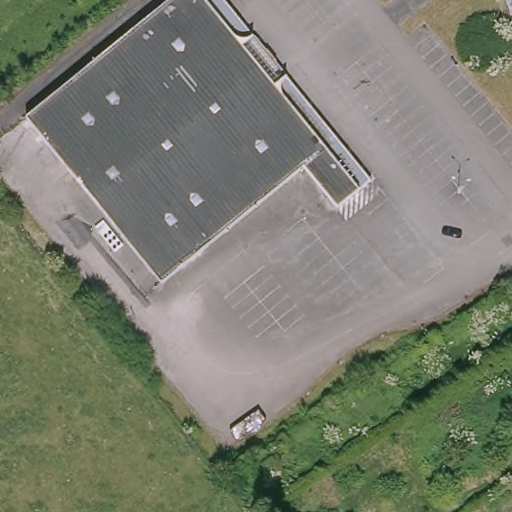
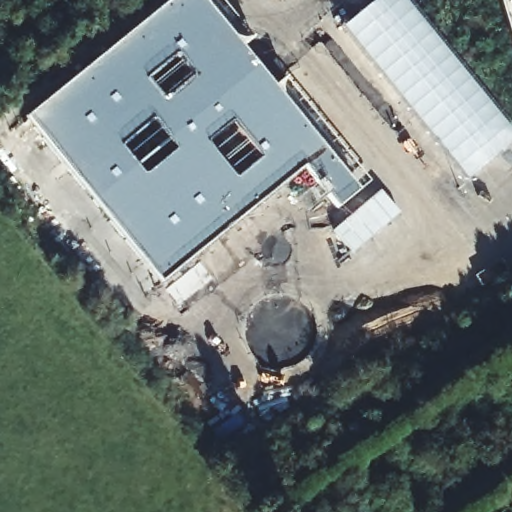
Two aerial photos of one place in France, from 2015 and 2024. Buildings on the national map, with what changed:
unchanged [(337,206),(306,165),(162,279),(28,112),(169,0),(211,0),(245,42),(257,34),(290,76),(279,85),(361,189),(337,206)]
new [(512,129),(512,142),(468,179),(345,23),(373,0),(406,0),(512,129)]
new [(398,212),(352,252),(335,230),(379,190),(398,212)]

